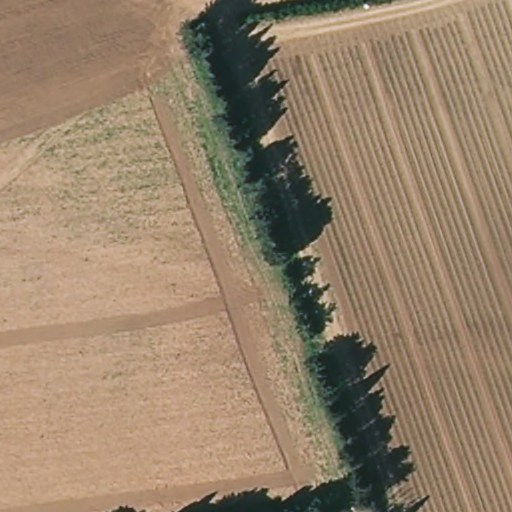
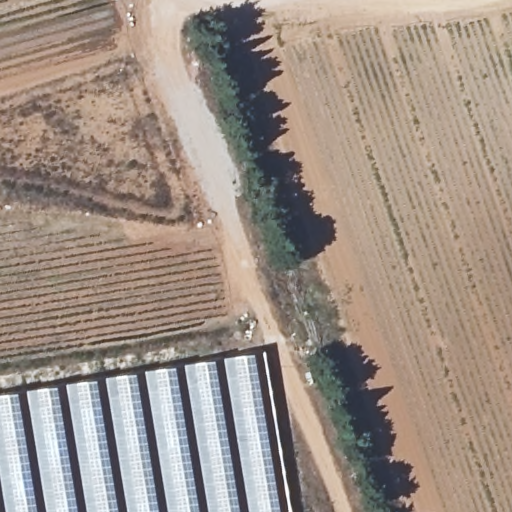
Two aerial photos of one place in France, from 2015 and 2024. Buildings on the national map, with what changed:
new [(0,393),(261,350),(288,512),(0,512),(0,393)]

